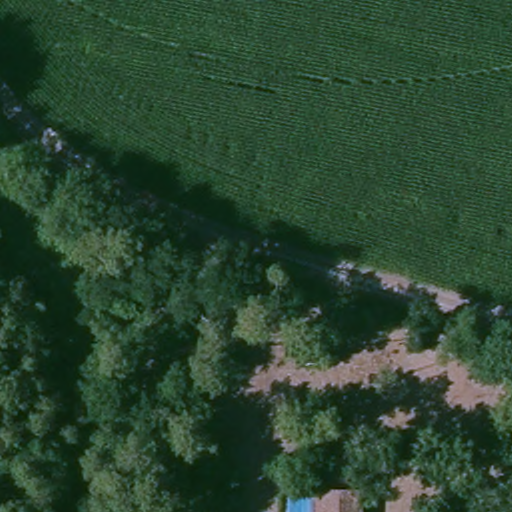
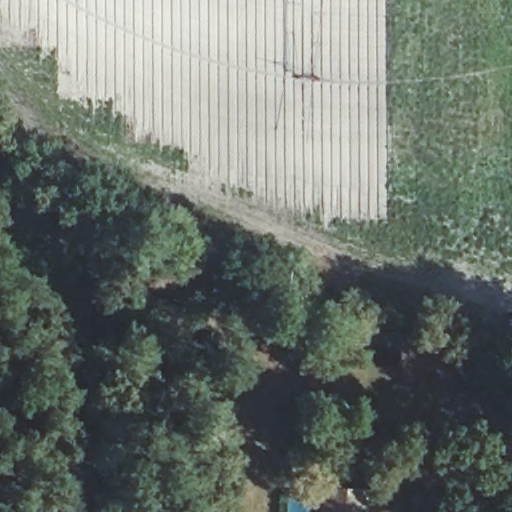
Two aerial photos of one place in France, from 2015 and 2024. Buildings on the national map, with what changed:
unchanged [(357,490),(357,512),(318,512),(318,492),(357,490)]

